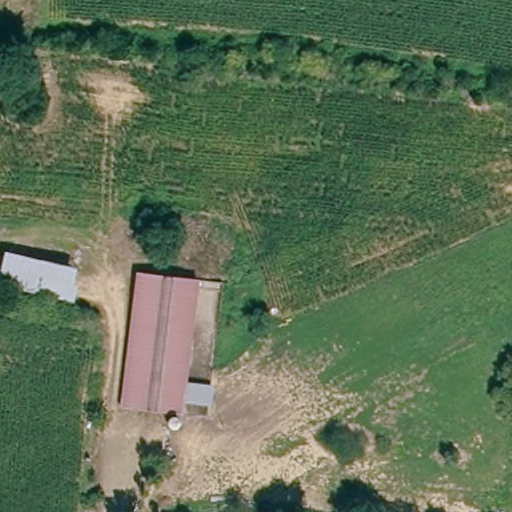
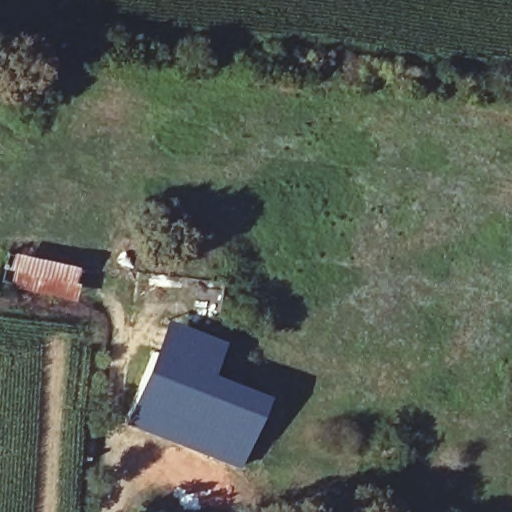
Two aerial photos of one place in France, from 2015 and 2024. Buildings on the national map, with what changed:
unchanged [(74,302),(0,284),(0,279),(6,252),(81,268),(74,302)]
demolished [(215,385),(214,406),(183,402),(182,408),(121,401),(136,273),(197,280),(186,382),(187,382),(215,385)]
new [(154,348),(158,349),(170,320),(224,341),(213,373),(267,394),(238,467),(123,422),(154,348)]

